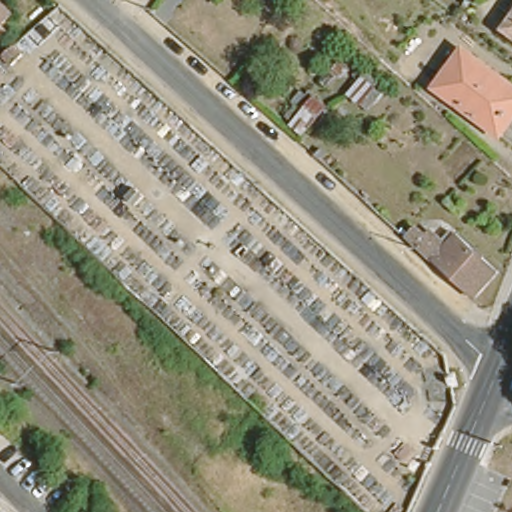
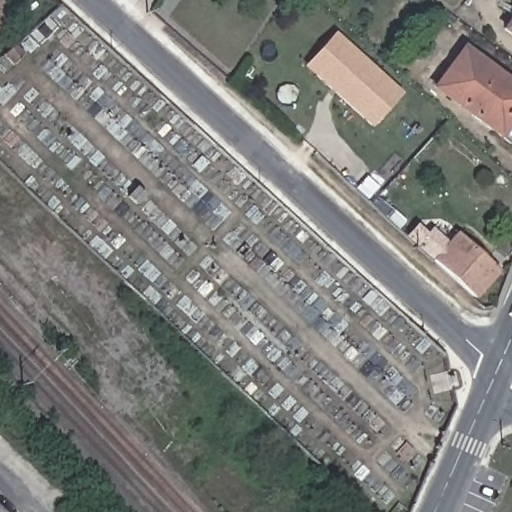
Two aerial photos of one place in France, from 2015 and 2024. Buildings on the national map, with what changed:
unchanged [(0,0),(5,0),(14,10),(0,24),(0,0)]
unchanged [(490,37),(512,7),(512,54),(490,37)]
new [(376,126),(319,75),(309,65),(337,33),(348,43),(404,94),(376,126)]
unchanged [(497,132),(489,126),(432,84),(460,45),(508,80),(512,84),(512,112),(497,132)]
unchanged [(422,234),(427,228),(442,241),(453,231),(494,270),(471,296),(403,234),(411,224),(422,234)]
unchanged [(0,508),(4,512),(0,512),(0,508)]

